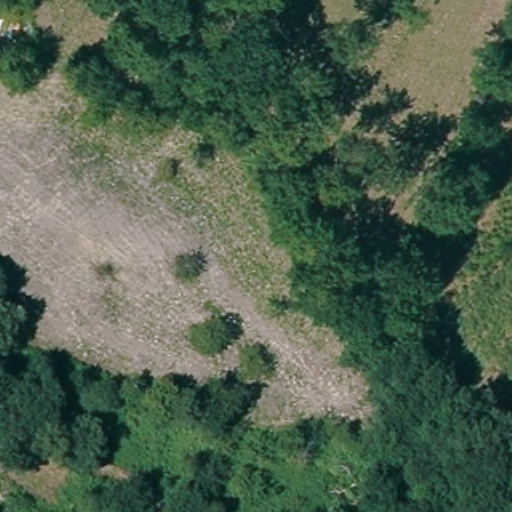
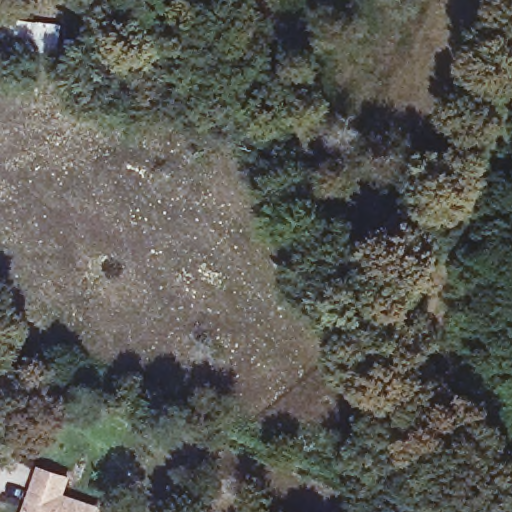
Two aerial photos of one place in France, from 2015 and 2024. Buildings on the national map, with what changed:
new [(72,476),(65,494),(101,507),(100,512),(24,512),(39,467),(72,476)]

